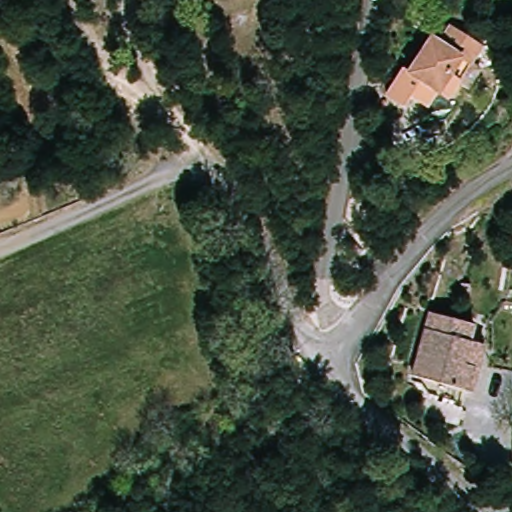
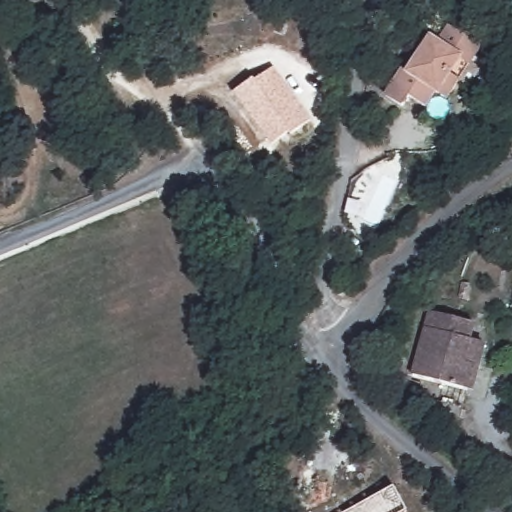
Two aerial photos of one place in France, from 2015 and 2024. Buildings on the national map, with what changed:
unchanged [(494,54),(480,70),(470,62),(454,82),(463,90),(445,112),(435,104),(426,116),(411,102),(404,110),(385,93),(411,62),(414,65),(436,36),(447,46),(462,26),(494,54)]
new [(253,79),(255,82),(274,68),(312,121),(291,136),(290,134),(272,148),(233,95),(253,79)]
unchanged [(478,359),(465,388),(410,362),(438,305),(480,326),(476,335),(488,340),(478,359)]
new [(393,487),(407,512),(346,512),(393,487)]

